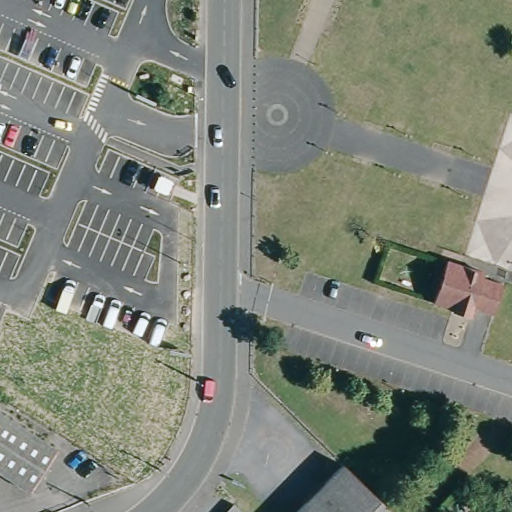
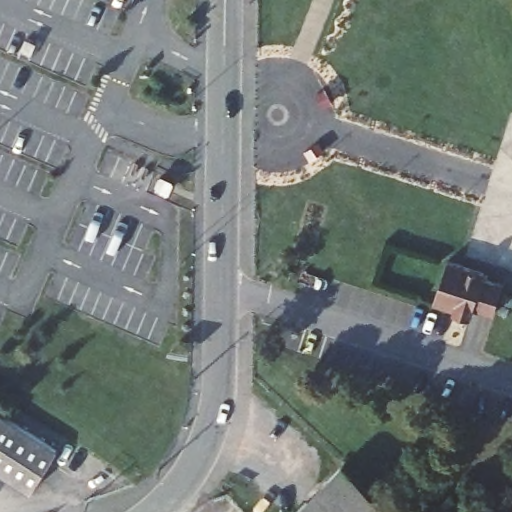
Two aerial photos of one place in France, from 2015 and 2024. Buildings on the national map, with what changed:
unchanged [(454,306),(435,301),(448,258),(486,270),(484,276),(504,282),(495,312),(474,305),(472,314),(460,311),(453,309),(454,306)]
unchanged [(35,490),(0,468),(0,409),(61,448),(35,490)]
unchanged [(299,512),(342,467),(388,512),(299,512)]
unchanged [(229,512),(235,506),(241,512),(229,512)]

